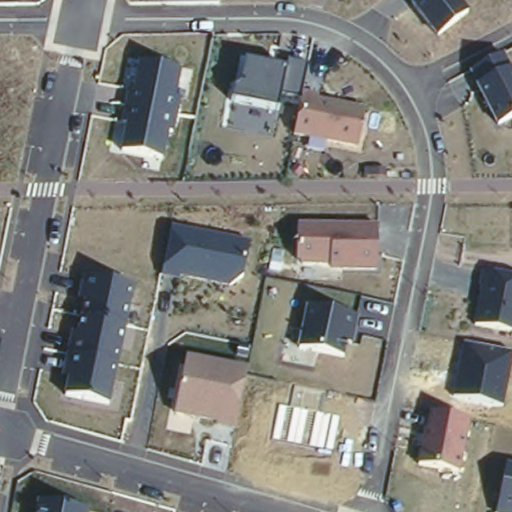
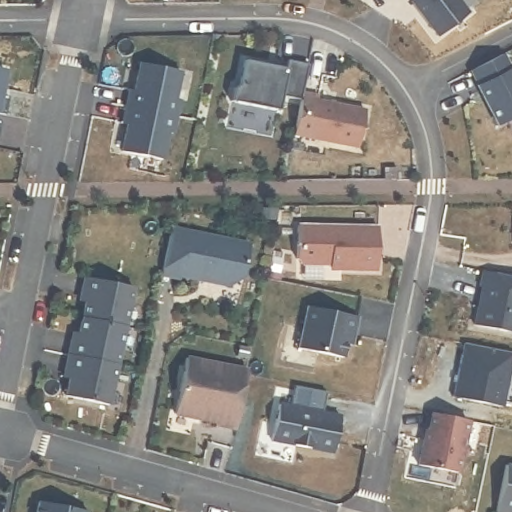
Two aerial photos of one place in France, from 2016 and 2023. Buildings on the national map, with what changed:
unchanged [(437,38),(409,4),(411,1),(411,0),(459,0),(468,13),(437,38)]
unchanged [(512,118),(497,128),(467,74),(502,54),(512,72),(512,118)]
unchanged [(184,66),(179,92),(183,94),(175,131),(170,130),(164,158),(125,150),(129,124),(125,123),(132,84),(136,85),(141,59),(184,66)]
unchanged [(286,69),(289,59),(309,63),(303,94),(323,97),(322,101),(367,109),(360,151),(291,137),(297,100),(281,98),(279,111),(231,100),(234,89),(242,81),(247,63),(286,69)]
new [(4,63),(0,81),(0,84),(0,62),(4,63)]
new [(7,89),(4,108),(0,107),(0,88),(7,89)]
unchanged [(377,274),(330,275),(330,266),(297,267),(297,227),(379,227),(377,274)]
unchanged [(251,244),(244,280),(231,289),(180,279),(180,284),(162,280),(171,228),(251,244)]
unchanged [(512,333),(474,327),(484,271),(512,276),(512,333)]
unchanged [(135,287),(110,408),(65,397),(69,377),(65,374),(73,331),(79,332),(82,305),(78,304),(84,278),(135,287)]
unchanged [(357,315),(352,347),(347,345),(345,357),(298,348),(305,306),(357,315)]
unchanged [(512,371),(505,409),(450,398),(461,344),(512,355),(512,371)]
unchanged [(249,369),(236,431),(175,417),(187,357),(249,369)]
new [(323,392),(320,412),(338,417),(332,454),(270,442),(276,404),(287,406),(292,386),(323,392)]
unchanged [(471,421),(460,473),(418,464),(428,414),(471,421)]
unchanged [(508,465),(512,466),(512,512),(499,512),(508,465)]
unchanged [(90,512),(35,512),(37,502),(90,512)]

